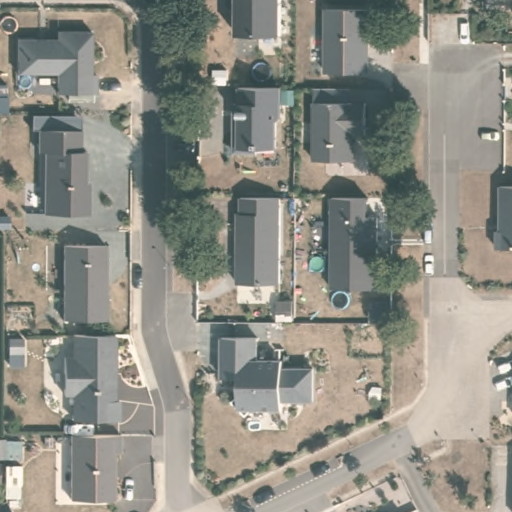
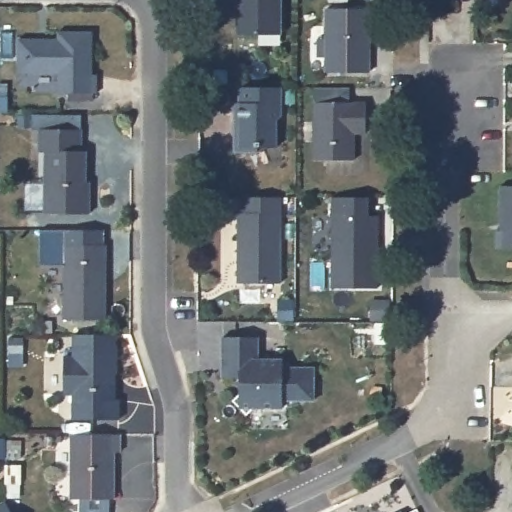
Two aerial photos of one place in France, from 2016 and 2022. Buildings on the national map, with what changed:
unchanged [(238,34),(238,0),(280,0),(283,35),(238,34)]
unchanged [(370,9),(371,75),(324,75),(325,13),(370,9)]
unchanged [(58,93),(58,73),(18,73),(18,40),(36,40),(39,44),(46,44),(46,40),(58,40),(58,33),(92,34),(92,76),(97,76),(97,93),(58,93)]
unchanged [(281,86),(278,149),(235,150),(238,89),(281,86)]
unchanged [(367,104),(366,137),(353,137),(354,161),(313,161),(313,104),(367,104)]
unchanged [(82,150),(87,150),(87,184),(91,188),(90,212),(45,212),(45,151),(39,151),(39,129),(82,129),(82,150)]
unchanged [(512,248),(495,248),(500,189),(512,189),(512,248)]
unchanged [(375,196),(376,290),(330,289),(333,195),(375,196)]
unchanged [(279,198),(279,286),(235,285),(235,203),(279,198)]
unchanged [(64,319),(64,245),(106,245),(106,319),(64,319)]
unchanged [(115,389),(111,393),(111,399),(119,399),(119,419),(74,419),(74,394),(64,394),(64,357),(74,357),(74,334),(116,334),(115,389)]
unchanged [(245,414),(230,401),(237,393),(237,377),(220,377),(220,337),(255,337),(255,359),(281,359),(280,368),(311,368),(311,399),(280,399),(280,408),(252,408),(245,414)]
unchanged [(121,452),(115,452),(114,499),(70,499),(71,434),(121,434),(121,452)]
unchanged [(2,481),(0,480),(0,463),(2,463),(2,481)]
unchanged [(6,501),(11,512),(0,512),(0,504),(6,501)]

